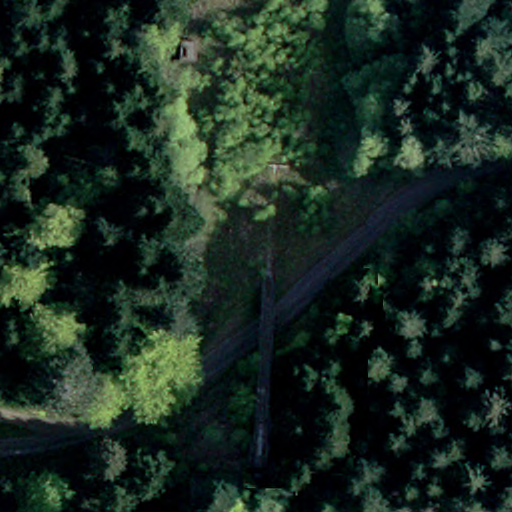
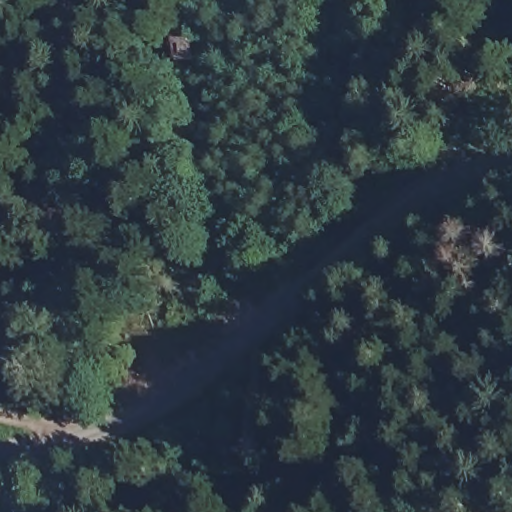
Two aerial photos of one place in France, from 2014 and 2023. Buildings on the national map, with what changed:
unchanged [(176,62),(177,39),(194,41),(190,63),(176,62)]

